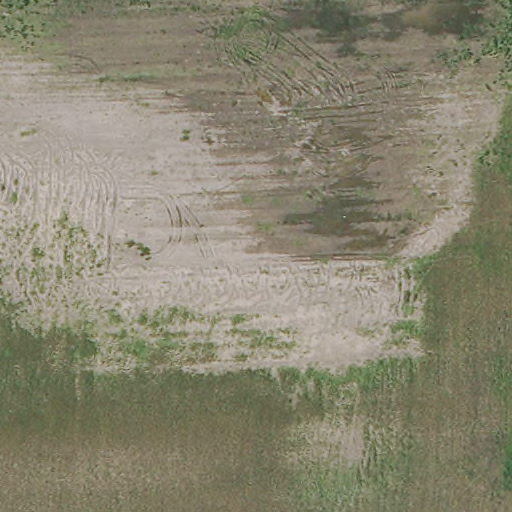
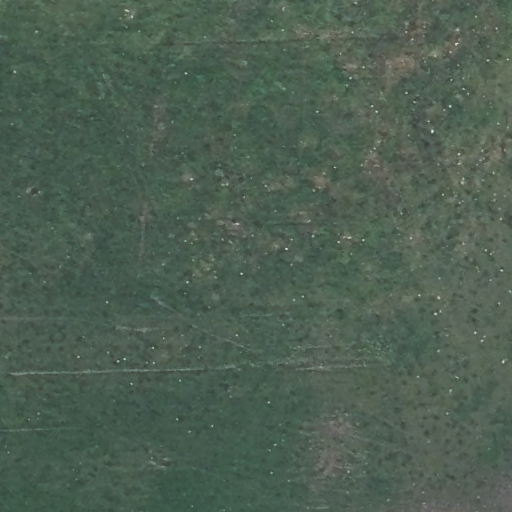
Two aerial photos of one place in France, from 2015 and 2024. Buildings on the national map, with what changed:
[]

